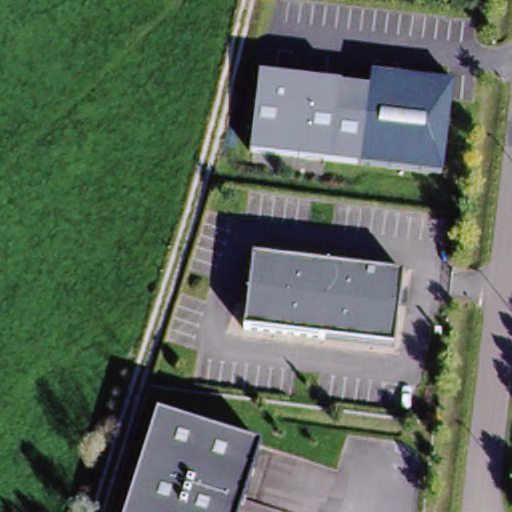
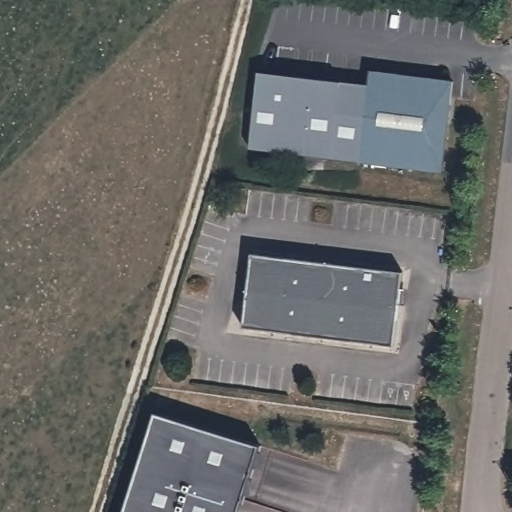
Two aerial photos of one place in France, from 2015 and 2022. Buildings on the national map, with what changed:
unchanged [(455,78),(460,79),(455,123),(450,168),(366,158),(377,69),(455,78)]
unchanged [(366,158),(250,144),(259,73),(375,88),(366,158)]
unchanged [(257,254),(405,272),(397,345),(248,327),(257,254)]
unchanged [(266,445),(245,512),(130,512),(160,413),(266,445)]

